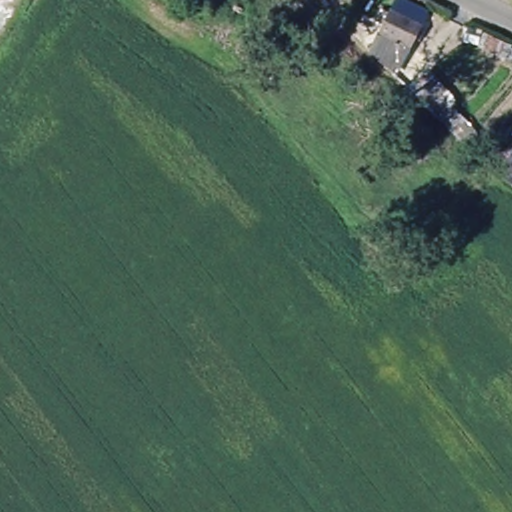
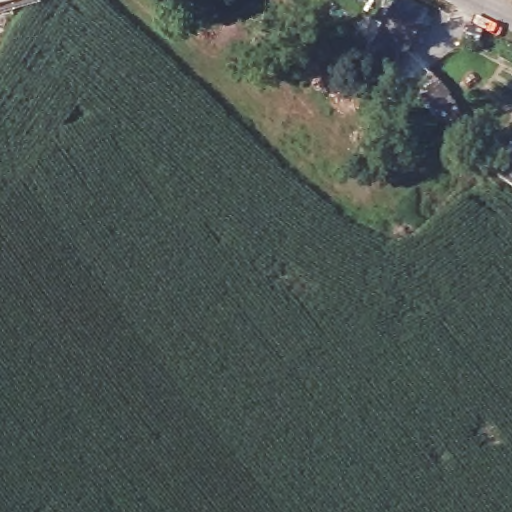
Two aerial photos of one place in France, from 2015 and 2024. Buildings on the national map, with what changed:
unchanged [(373,53),(391,14),(397,1),(427,16),(420,31),(399,80),(373,53)]

